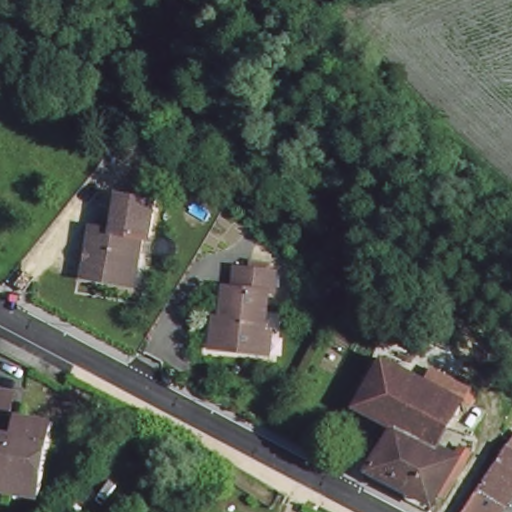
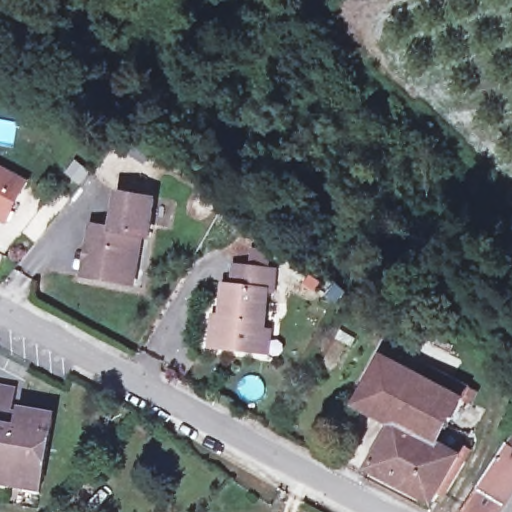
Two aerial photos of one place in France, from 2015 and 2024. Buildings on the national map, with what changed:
new [(6,226),(0,223),(0,165),(31,181),(6,226)]
unchanged [(130,278),(109,271),(121,219),(138,225),(147,190),(179,201),(170,237),(163,235),(153,274),(150,285),(130,278)]
unchanged [(230,286),(239,287),(243,267),(285,275),(282,295),(275,294),(265,356),(222,350),(230,286)]
unchanged [(369,406),(394,360),(432,381),(430,385),(407,426),(369,406)]
unchanged [(430,385),(432,381),(471,402),(449,447),(465,456),(468,453),(471,451),(476,452),(479,455),(480,458),(478,462),(475,464),(473,466),(468,465),(465,465),(441,507),(412,493),(402,488),(379,476),(407,426),(430,385)]
unchanged [(0,492),(0,394),(12,395),(8,416),(19,418),(52,424),(38,498),(0,492)]
unchanged [(501,496),(475,478),(512,431),(512,483),(501,496)]

